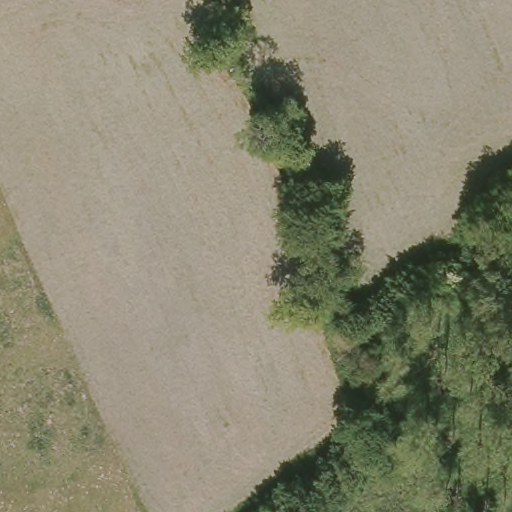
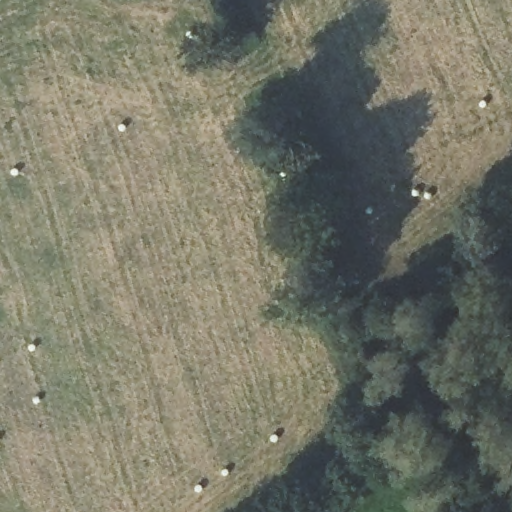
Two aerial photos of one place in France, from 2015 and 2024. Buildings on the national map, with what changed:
[]

